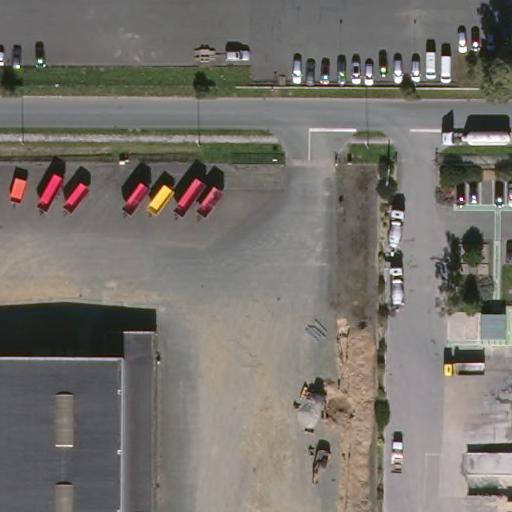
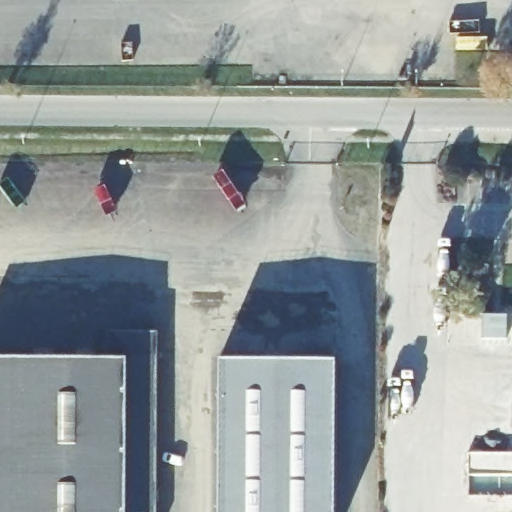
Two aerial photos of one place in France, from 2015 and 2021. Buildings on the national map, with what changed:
unchanged [(494,313),(459,313),(459,298),(474,298),(494,298),(494,313)]
unchanged [(101,336),(153,336),(152,512),(0,512),(0,363),(101,364),(101,336)]
new [(336,362),(335,512),(218,512),(219,361),(336,362)]

